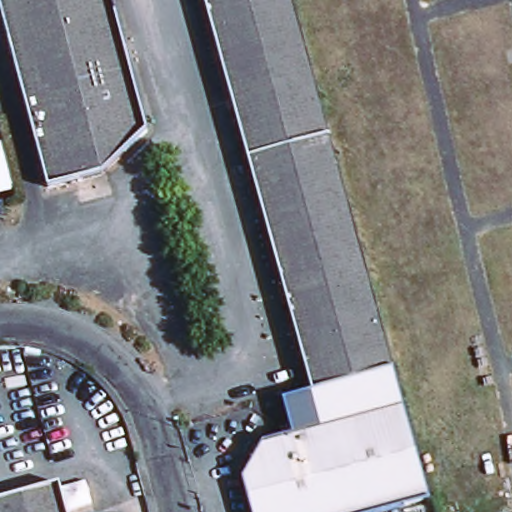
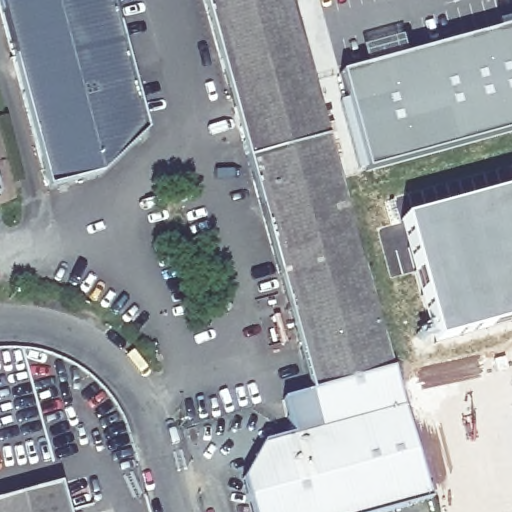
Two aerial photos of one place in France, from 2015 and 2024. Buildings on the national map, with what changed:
unchanged [(128,201),(69,217),(13,0),(126,0),(165,149),(128,201)]
unchanged [(306,0),(327,76),(345,144),(261,167),(216,0),(306,0)]
new [(401,35),(406,53),(472,35),(501,25),(500,23),(512,19),(512,132),(365,172),(338,73),(365,64),(360,46),(401,35)]
unchanged [(405,364),(321,387),(261,167),(345,144),(405,364)]
unchanged [(8,192),(0,194),(0,160),(8,192)]
new [(512,321),(500,324),(436,342),(400,219),(512,188),(512,321)]
unchanged [(405,364),(415,404),(441,497),(387,512),(263,512),(253,476),(274,440),(331,424),(321,387),(405,364)]
unchanged [(77,512),(0,512),(0,504),(70,485),(77,512)]

